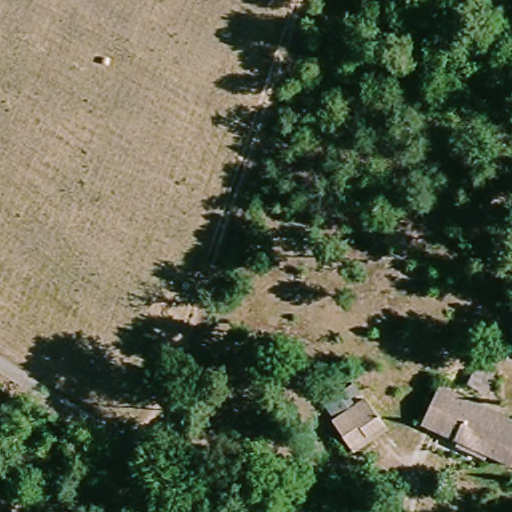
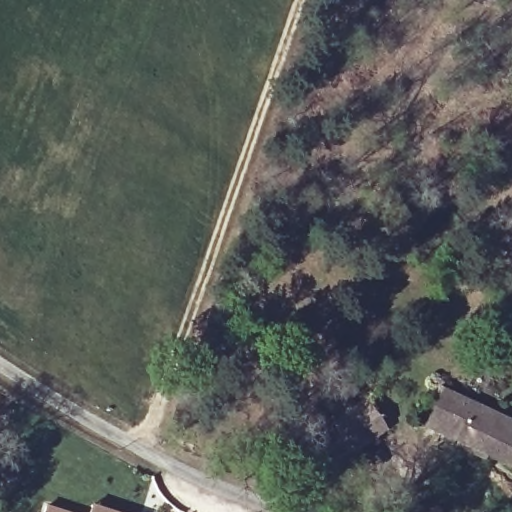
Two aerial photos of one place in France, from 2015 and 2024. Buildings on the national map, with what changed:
unchanged [(512,420),(512,463),(493,455),(491,459),(462,447),(464,441),(426,424),(443,388),(512,420)]
unchanged [(369,445),(358,453),(336,425),(369,400),(387,424),(390,428),(369,445)]
new [(46,503),(76,512),(43,512),(46,503)]
new [(119,512),(89,512),(91,503),(119,512)]

